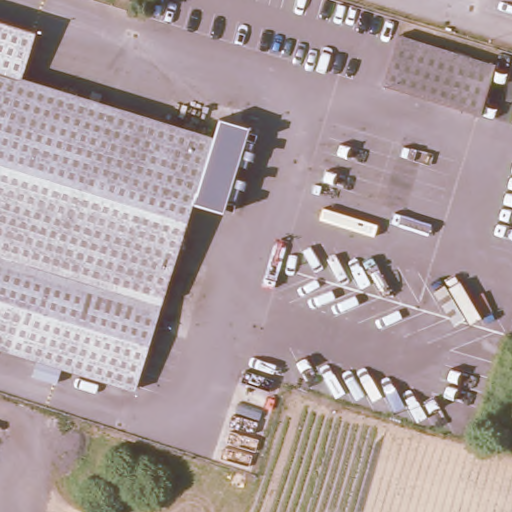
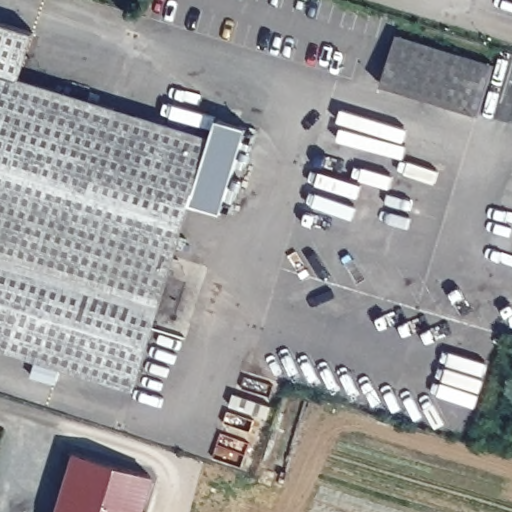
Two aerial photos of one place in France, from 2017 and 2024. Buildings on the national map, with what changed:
unchanged [(59,360),(54,377),(30,369),(35,352),(0,342),(0,16),(34,27),(20,73),(209,131),(189,197),(133,382),(59,360)]
unchanged [(381,82),(397,31),(494,61),(479,111),(381,82)]
unchanged [(209,131),(246,137),(224,209),(189,197),(209,131)]
new [(147,471),(136,512),(49,512),(66,448),(147,471)]

